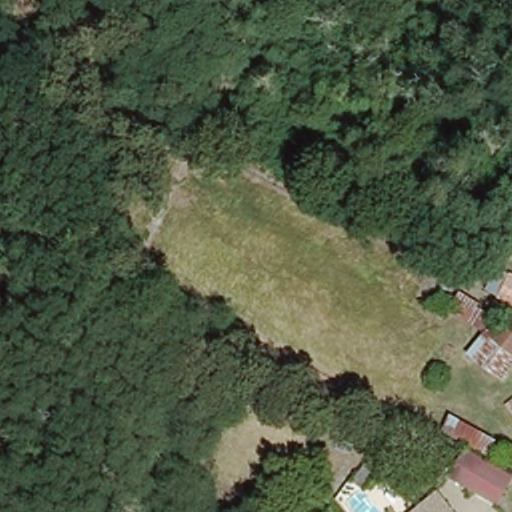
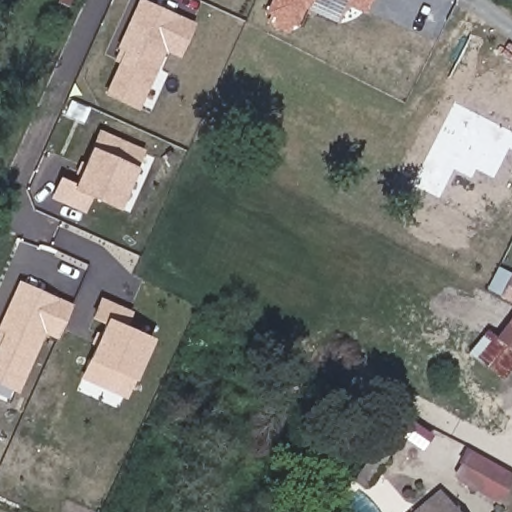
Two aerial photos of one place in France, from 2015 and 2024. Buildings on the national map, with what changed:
new [(164,50),(138,109),(105,95),(119,63),(113,61),(119,49),(115,47),(137,0),(144,0),(195,23),(179,57),(164,50)]
new [(346,3),(336,22),(305,8),(297,26),(292,24),(288,33),(266,23),(270,14),(264,12),(269,0),(371,0),(365,11),(346,3)]
new [(145,150),(135,167),(115,209),(91,197),(85,213),(50,199),(60,176),(73,182),(88,147),(99,129),(145,150)]
new [(500,296),(486,290),(498,267),(512,272),(512,303),(500,296)]
new [(57,339),(45,334),(20,393),(12,389),(8,400),(0,396),(0,320),(18,281),(72,304),(57,339)]
new [(505,380),(468,354),(484,331),(451,310),(462,291),(486,307),(479,320),(495,329),(488,336),(512,311),(512,369),(505,380)]
new [(126,399),(80,378),(102,324),(90,318),(100,297),(132,312),(124,325),(154,338),(126,399)]
demolished [(508,350),(488,336),(512,311),(512,345),(508,350)]
unchanged [(504,403),(512,396),(512,412),(504,403)]
unchanged [(440,431),(449,413),(493,436),(486,452),(440,431)]
new [(512,472),(512,481),(500,503),(452,477),(467,448),(512,472)]
unchanged [(456,512),(440,512),(450,504),(456,512)]

